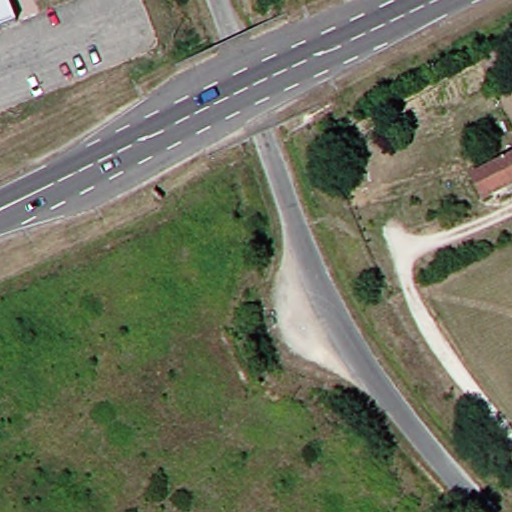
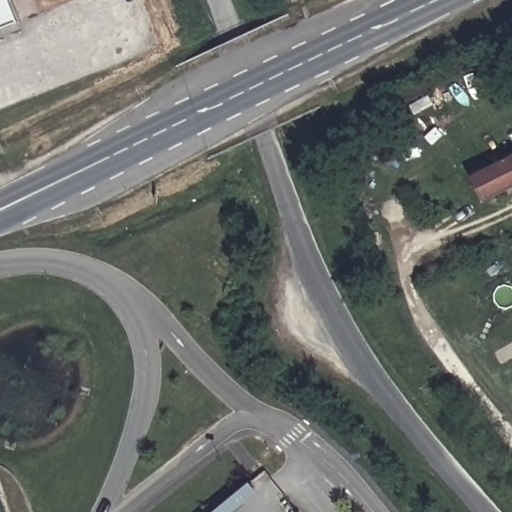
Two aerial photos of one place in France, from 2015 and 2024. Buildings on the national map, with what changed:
unchanged [(0,29),(0,0),(7,0),(16,23),(0,29)]
unchanged [(473,195),(463,174),(512,149),(512,176),(473,195)]
new [(214,512),(249,483),(257,492),(234,512),(214,512)]

